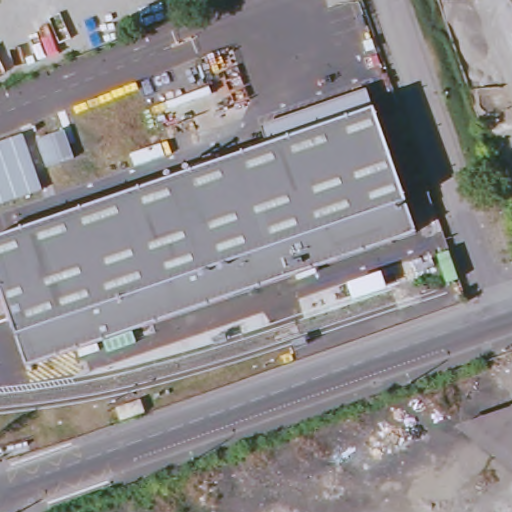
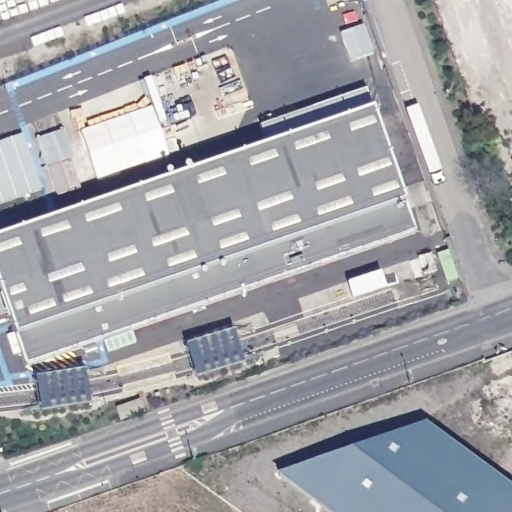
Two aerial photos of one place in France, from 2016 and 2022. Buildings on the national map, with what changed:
unchanged [(268,145),(262,126),(367,89),(374,109),(268,145)]
unchanged [(417,232),(28,368),(0,288),(0,239),(268,145),(374,109),(417,232)]
unchanged [(0,206),(0,144),(25,135),(42,190),(0,206)]
unchanged [(114,409),(137,400),(142,413),(118,421),(114,409)]
new [(512,512),(326,512),(277,475),(425,423),(512,488),(512,512)]

